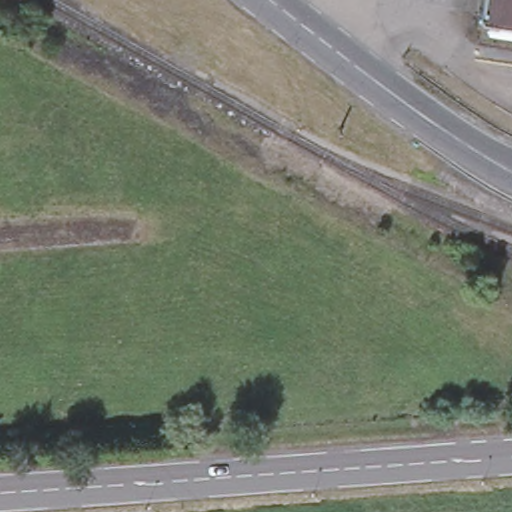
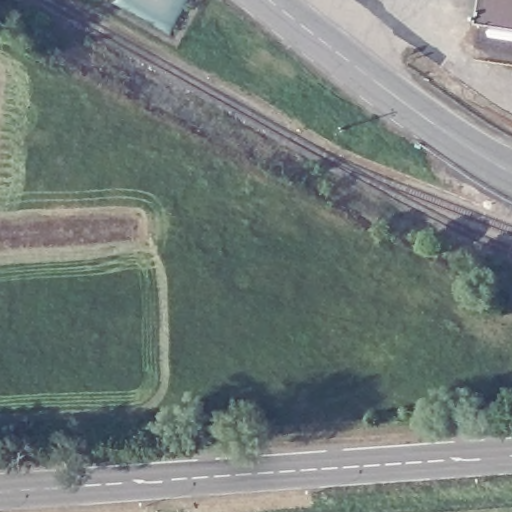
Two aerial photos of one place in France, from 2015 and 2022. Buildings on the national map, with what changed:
unchanged [(480,24),(483,0),(512,0),(512,29),(480,24)]

